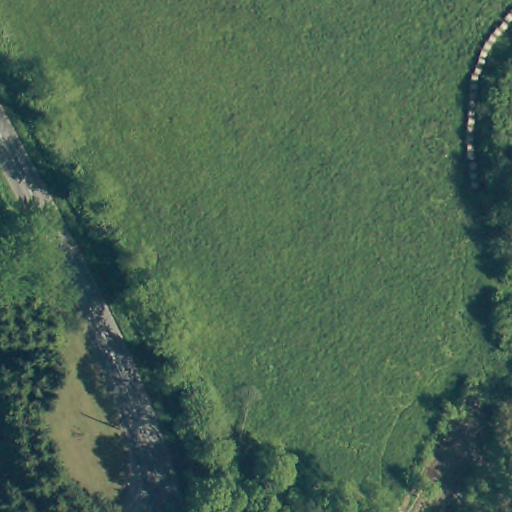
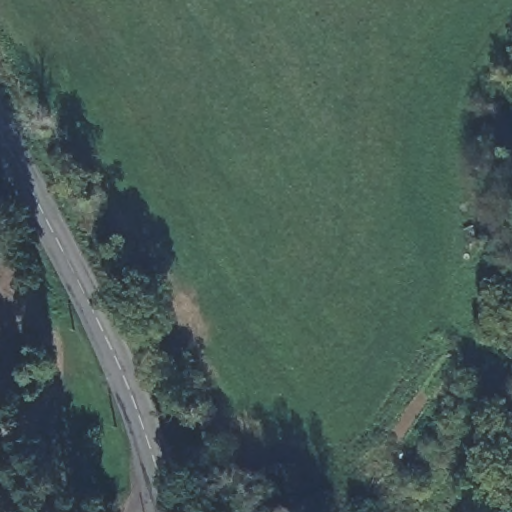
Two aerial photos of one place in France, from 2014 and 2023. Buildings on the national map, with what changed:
[]

